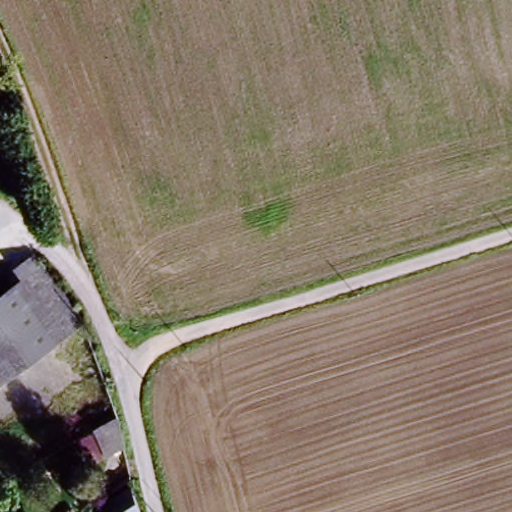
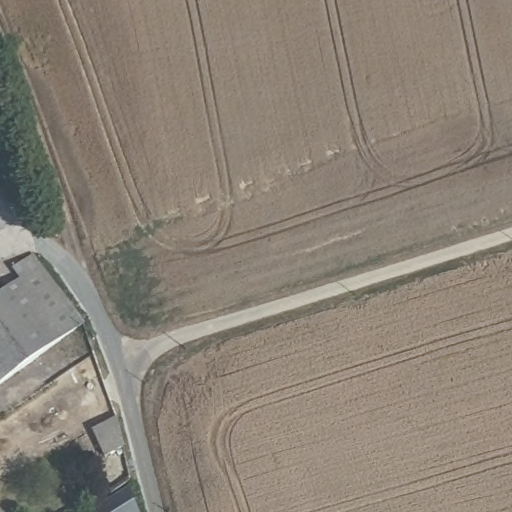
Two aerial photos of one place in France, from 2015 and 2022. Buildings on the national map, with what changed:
unchanged [(5,119),(0,123),(0,110),(5,119)]
unchanged [(84,326),(0,381),(0,293),(44,265),(84,326)]
unchanged [(116,415),(124,448),(113,455),(95,429),(116,415)]
unchanged [(121,512),(105,512),(118,505),(121,512)]

